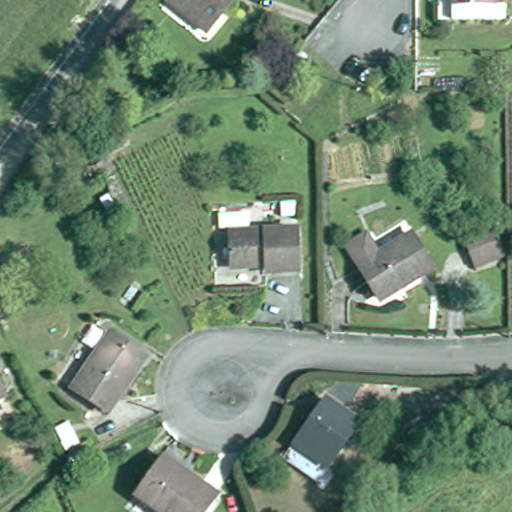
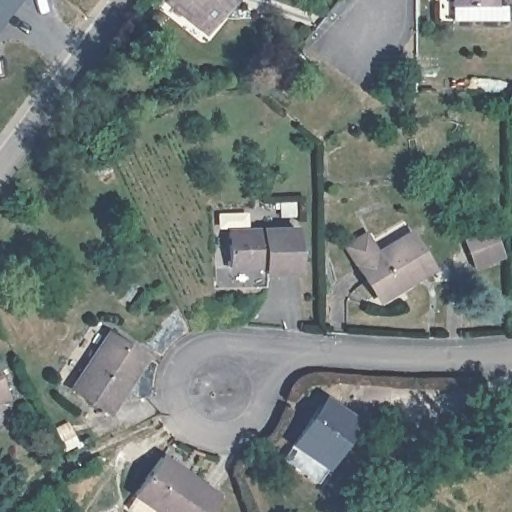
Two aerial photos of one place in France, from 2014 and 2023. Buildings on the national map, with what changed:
new [(0,24),(0,0),(17,0),(0,24)]
unchanged [(178,0),(240,0),(215,34),(198,22),(174,5),(178,0)]
unchanged [(497,11),(508,10),(508,26),(455,25),(454,0),(496,0),(497,11)]
unchanged [(494,228),(508,260),(481,270),(464,239),(494,228)]
unchanged [(299,274),(264,274),(264,265),(229,265),(229,232),(299,233),(299,274)]
unchanged [(357,266),(409,235),(429,269),(378,299),(357,266)]
unchanged [(109,418),(76,393),(114,340),(149,365),(109,418)]
unchanged [(3,391),(0,393),(0,385),(3,391)]
unchanged [(328,472),(295,446),(314,423),(318,427),(334,406),(362,428),(328,472)]
unchanged [(158,512),(136,499),(159,461),(218,497),(208,512),(158,512)]

